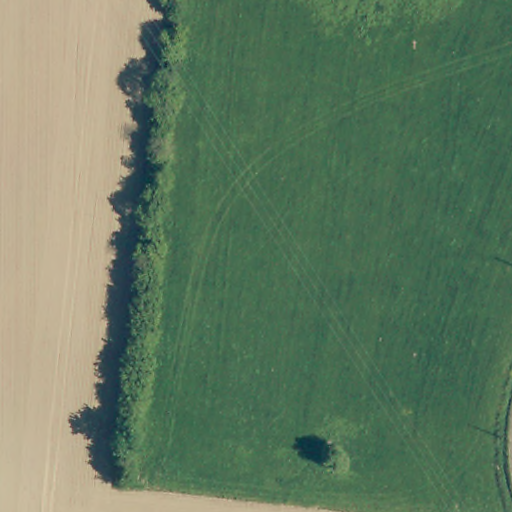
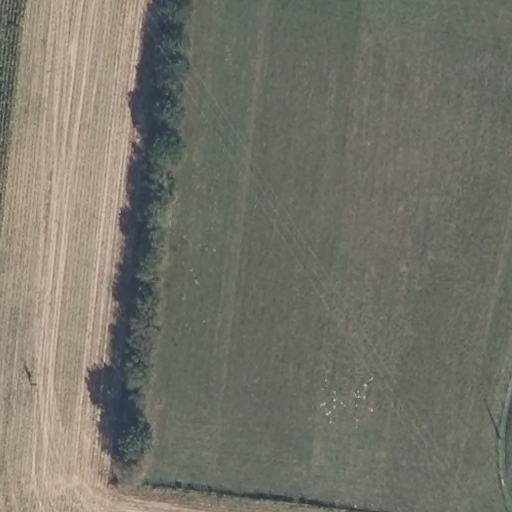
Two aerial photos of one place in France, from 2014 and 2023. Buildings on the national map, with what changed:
[]

